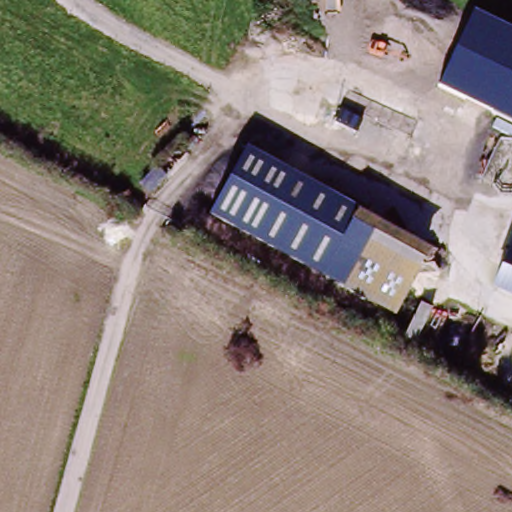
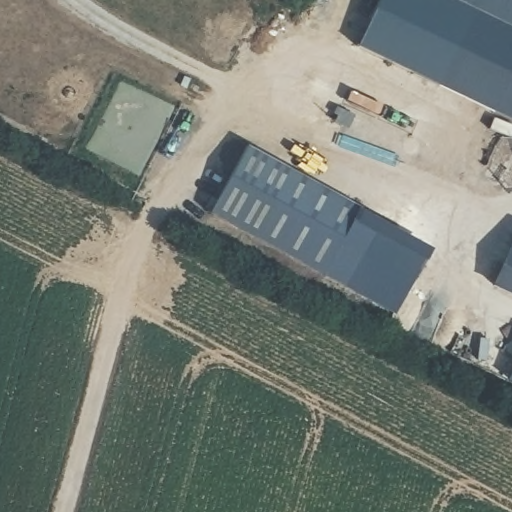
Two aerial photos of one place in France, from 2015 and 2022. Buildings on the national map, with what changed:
new [(440,82),(356,47),(378,0),(478,0),(440,82)]
unchanged [(478,0),(512,0),(512,118),(440,82),(478,0)]
unchanged [(431,246),(396,314),(212,213),(248,145),(431,246)]
unchanged [(506,290),(512,277),(512,293),(506,290)]

